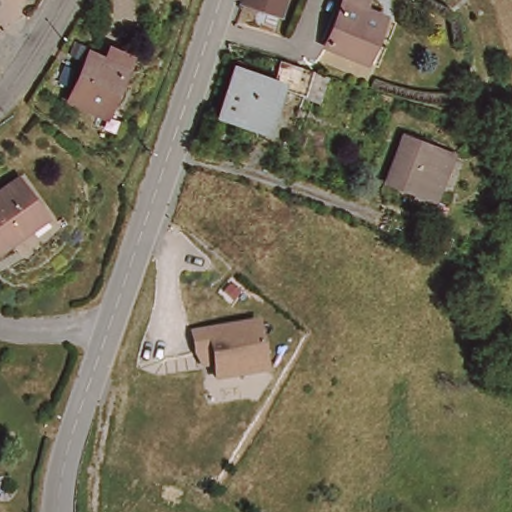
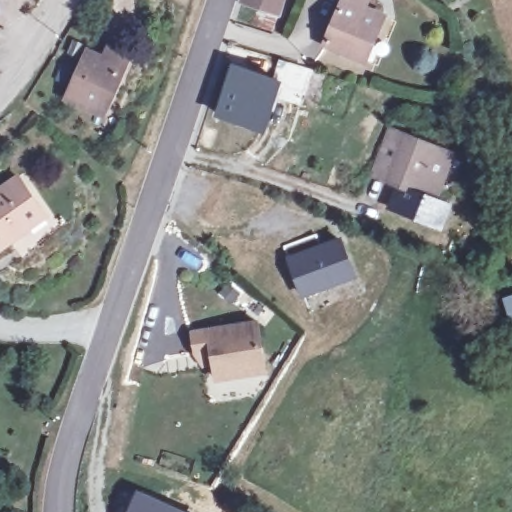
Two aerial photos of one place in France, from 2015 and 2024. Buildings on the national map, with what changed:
unchanged [(244,2),(245,0),(283,0),(279,14),(244,2)]
unchanged [(326,45),(345,0),(368,0),(364,9),(385,18),(377,35),(365,62),(360,59),(326,45)]
unchanged [(127,58),(102,113),(69,98),(89,54),(103,60),(109,49),(127,58)]
unchanged [(280,68),(309,77),(300,102),(272,92),(257,135),(214,120),(230,71),(232,64),(242,67),(240,74),(275,84),(280,68)]
unchanged [(435,201),(387,182),(370,175),(390,129),(405,136),(454,155),(435,201)]
unchanged [(19,178),(47,218),(0,251),(0,192),(19,178)]
new [(388,209),(397,186),(435,201),(437,197),(454,205),(441,231),(388,209)]
new [(302,298),(285,256),(342,236),(357,278),(302,298)]
unchanged [(257,315),(265,363),(217,371),(212,344),(197,347),(194,326),(257,315)]
new [(137,488),(191,512),(126,512),(137,488)]

